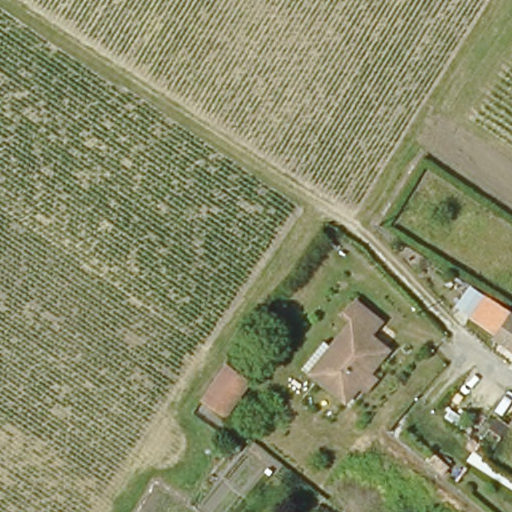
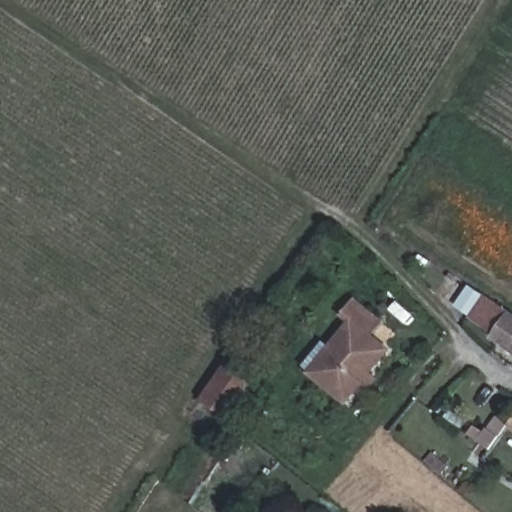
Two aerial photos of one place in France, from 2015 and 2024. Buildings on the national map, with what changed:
unchanged [(326,349),(350,318),(347,315),(357,300),(385,322),(375,337),(391,349),(349,406),(317,382),(307,375),(326,349)]
unchanged [(505,318),(512,322),(512,351),(493,339),(505,318)]
unchanged [(231,369),(251,384),(226,417),(206,402),(231,369)]
unchanged [(512,417),(512,426),(508,423),(512,417)]

